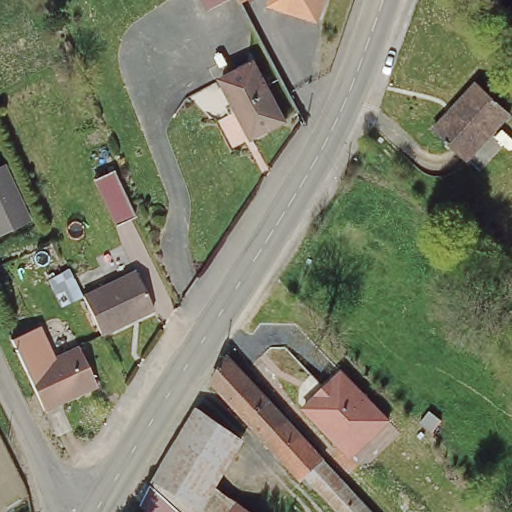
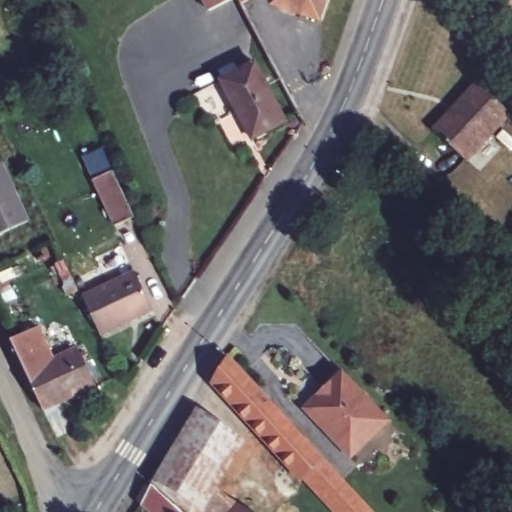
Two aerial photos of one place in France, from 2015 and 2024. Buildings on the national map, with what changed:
unchanged [(208,0),(223,0),(211,7),(208,0)]
unchanged [(268,13),(273,0),(320,0),(311,29),(268,13)]
unchanged [(218,76),(251,59),(281,119),(250,136),(234,106),(218,76)]
unchanged [(512,113),(512,115),(466,165),(433,134),(480,84),(512,113)]
unchanged [(0,166),(5,165),(30,221),(0,234),(0,166)]
unchanged [(120,172),(142,216),(125,225),(103,180),(120,172)]
unchanged [(134,276),(152,315),(101,338),(82,300),(134,276)]
unchanged [(27,376),(11,340),(40,327),(55,362),(27,376)]
unchanged [(236,347),(377,512),(343,512),(309,472),(305,475),(220,375),(236,347)]
unchanged [(79,351),(97,391),(46,415),(27,376),(79,351)]
unchanged [(390,422),(350,458),(302,407),(342,371),(390,422)]
unchanged [(230,433),(200,485),(187,507),(146,478),(188,408),(230,433)]
unchanged [(242,512),(184,512),(187,507),(200,485),(218,497),(242,512)]

